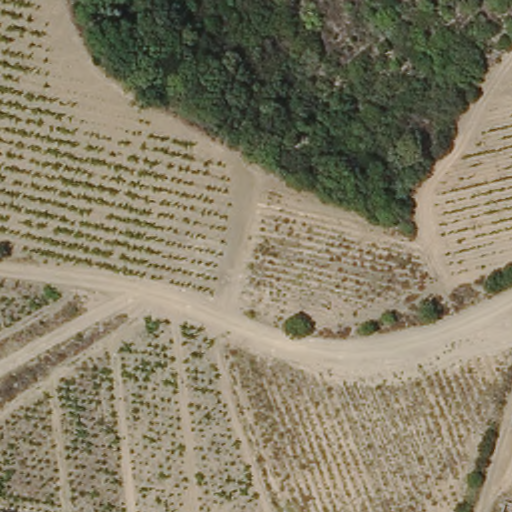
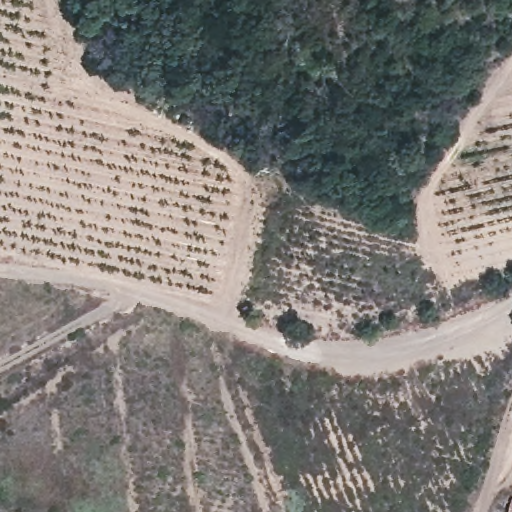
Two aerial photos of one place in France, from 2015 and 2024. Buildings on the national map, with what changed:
unchanged [(508,504),(512,504),(512,512),(507,512),(508,504)]

